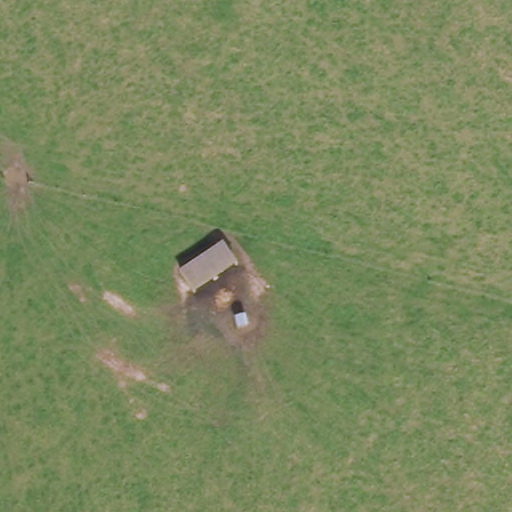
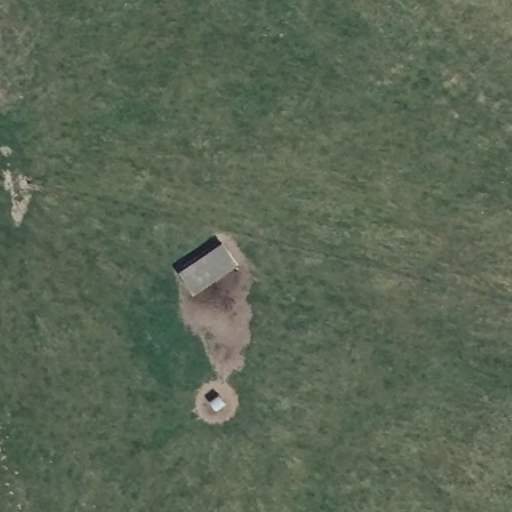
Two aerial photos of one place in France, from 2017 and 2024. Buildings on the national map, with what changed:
unchanged [(225,246),(240,266),(197,293),(182,272),(225,246)]

